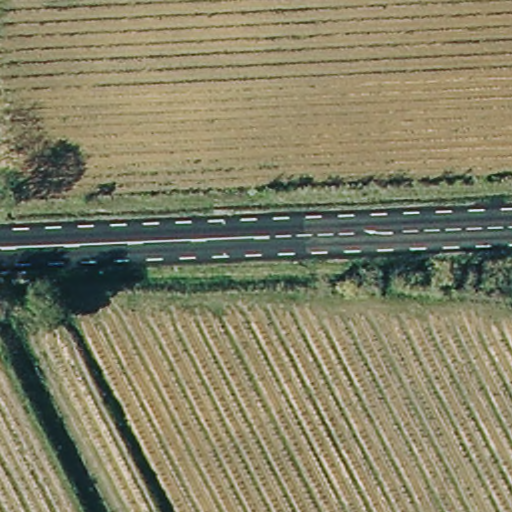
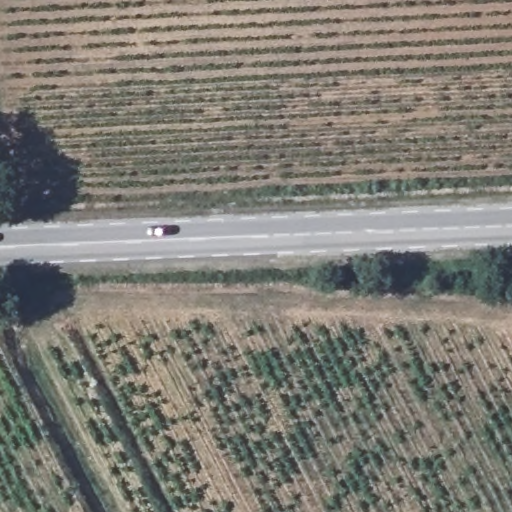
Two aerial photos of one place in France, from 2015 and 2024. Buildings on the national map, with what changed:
[]

